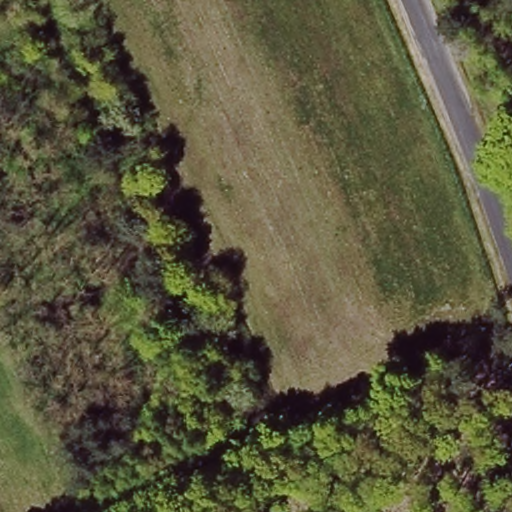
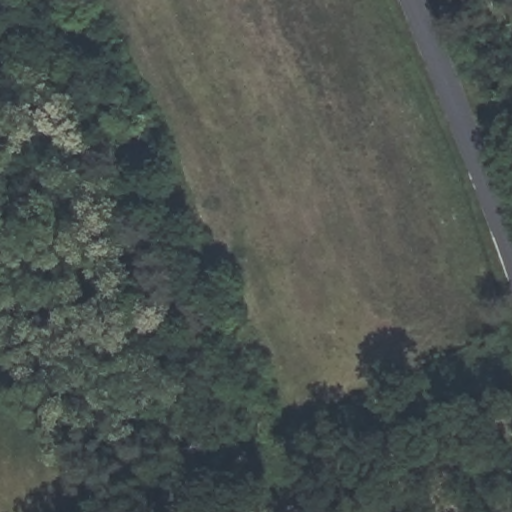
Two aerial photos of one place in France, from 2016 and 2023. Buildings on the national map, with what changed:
[]

